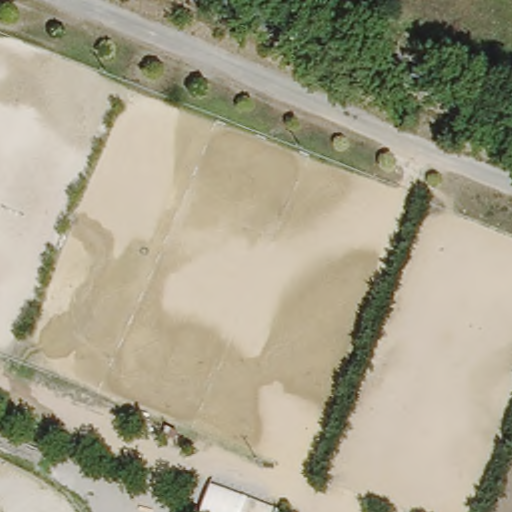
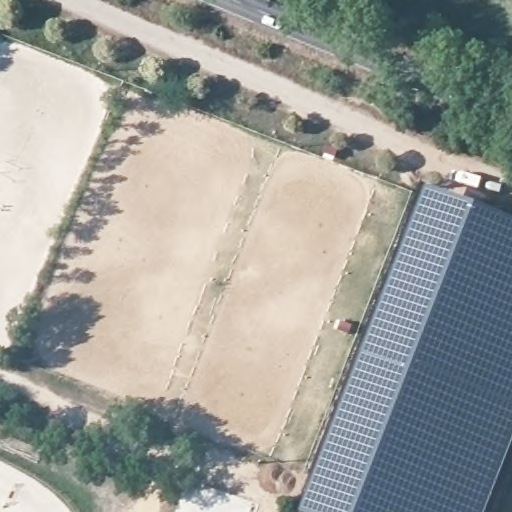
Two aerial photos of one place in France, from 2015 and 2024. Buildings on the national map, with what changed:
new [(351,368),(399,246),(424,188),(469,203),(512,219),(512,445),(486,512),(299,512),(311,475),(351,368)]
unchanged [(279,507),(278,512),(200,512),(208,481),(279,507)]

